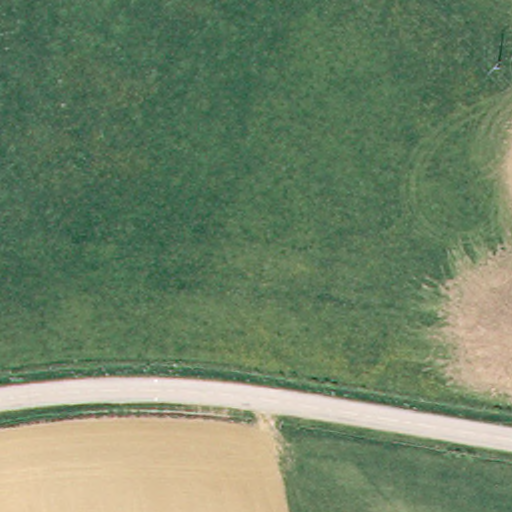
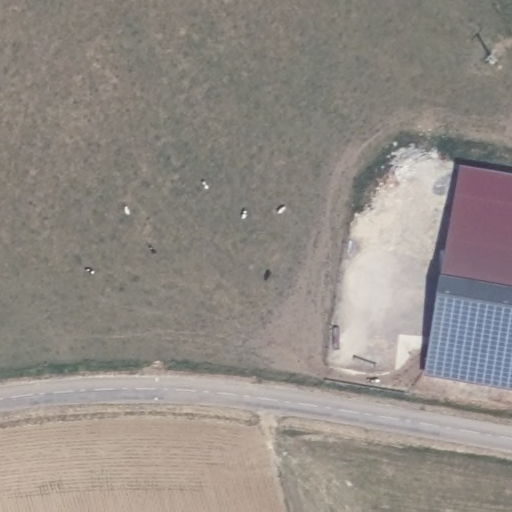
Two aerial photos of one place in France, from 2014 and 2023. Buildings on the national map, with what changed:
new [(461,167),(512,176),(512,289),(441,277),(461,167)]
new [(426,376),(441,277),(512,289),(512,390),(426,376)]

